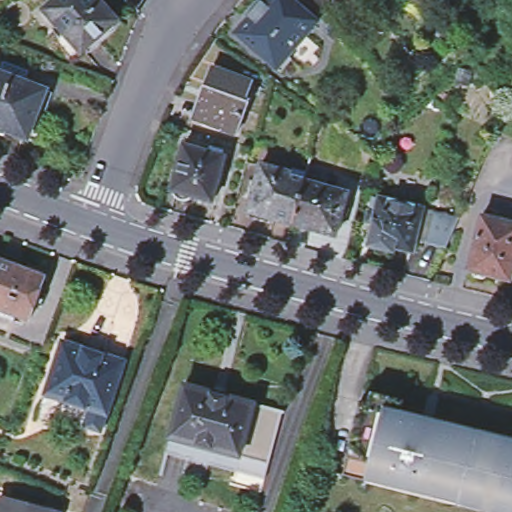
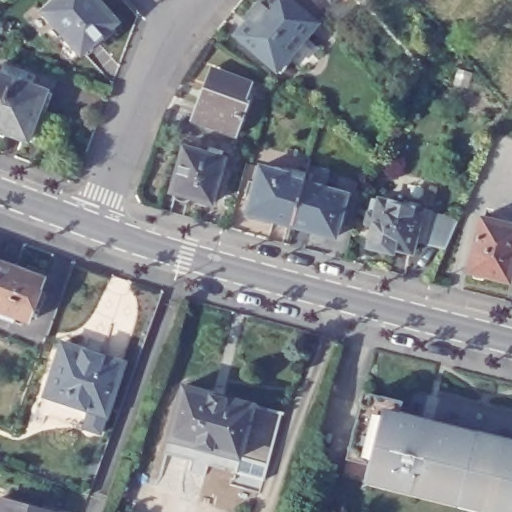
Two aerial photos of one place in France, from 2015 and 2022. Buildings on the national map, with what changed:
unchanged [(97,0),(116,22),(79,54),(43,11),(55,0),(97,0)]
unchanged [(241,39),(253,25),(251,22),(266,5),(268,7),(274,0),(288,0),(294,5),(299,0),(311,0),(326,18),(319,26),(321,28),(283,74),(241,39)]
unchanged [(327,0),(337,0),(331,5),(327,0)]
unchanged [(251,84),(245,101),(248,102),(234,137),(201,123),(221,72),(251,84)]
unchanged [(45,91),(27,140),(0,129),(0,74),(45,91)]
unchanged [(183,146),(224,157),(211,203),(189,197),(188,199),(188,200),(187,200),(186,200),(185,201),(184,201),(183,202),(181,202),(179,201),(178,201),(178,200),(177,200),(176,199),(174,197),(173,196),(173,195),(173,194),(173,192),(170,192),(183,146)]
unchanged [(291,225),(269,219),(268,224),(246,217),(248,212),(245,212),(259,165),(289,173),(289,177),(303,182),(291,225)]
unchanged [(303,182),(346,194),(334,237),(291,225),(303,182)]
unchanged [(410,247),(392,242),(391,247),(368,241),(373,220),(365,217),(368,207),(376,210),(379,195),(421,205),(410,247)]
unchanged [(444,246),(424,240),(432,208),(458,215),(444,246)]
unchanged [(489,277),(488,278),(486,277),(484,280),(482,282),(474,280),(473,277),(473,275),(470,273),(471,272),(467,271),(481,217),(512,226),(512,266),(508,282),(489,277)]
unchanged [(45,282),(29,325),(0,314),(0,264),(45,282)]
unchanged [(125,360),(106,415),(45,394),(64,340),(125,360)]
unchanged [(253,406),(239,459),(169,440),(183,387),(253,406)]
unchanged [(359,406),(362,394),(371,396),(404,403),(401,415),(512,442),(512,512),(472,512),(375,488),(341,480),(349,450),(359,406)]
unchanged [(3,505),(28,512),(1,512),(3,505)]

